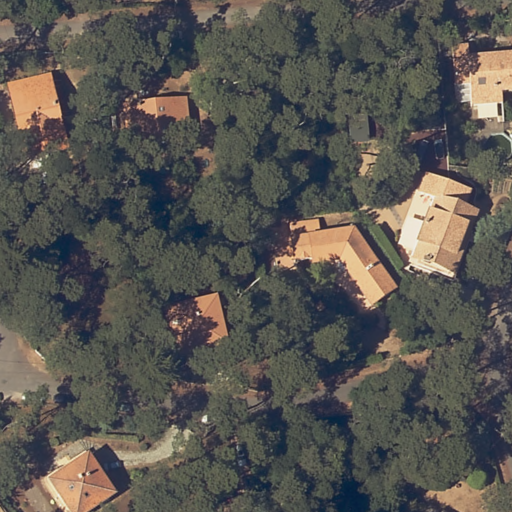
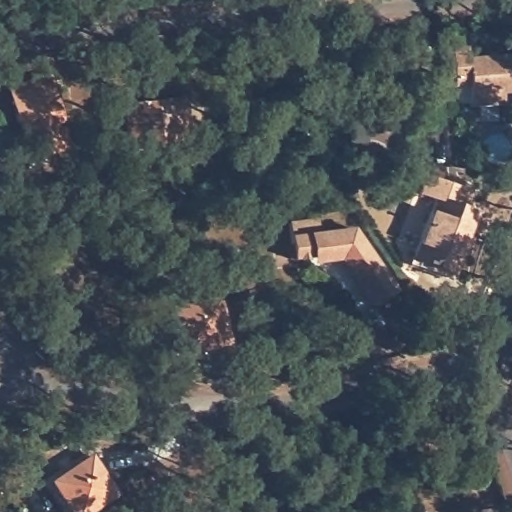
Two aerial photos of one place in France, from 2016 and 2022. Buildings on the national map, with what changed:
unchanged [(501,105),(470,107),(468,86),(454,88),(450,50),(464,47),(466,59),(512,54),(512,93),(500,95),(501,105)]
unchanged [(65,151),(25,161),(8,93),(48,83),(65,151)]
unchanged [(187,136),(129,142),(125,106),(184,100),(187,136)]
unchanged [(420,170),(432,175),(464,187),(457,205),(465,208),(443,268),(406,255),(428,195),(413,190),(417,179),(420,170)]
unchanged [(312,258),(311,251),(294,254),(289,220),(317,216),(319,230),(351,225),(393,285),(376,297),(369,300),(336,255),(312,258)]
unchanged [(229,346),(182,357),(171,314),(219,303),(229,346)]
unchanged [(428,418),(452,429),(446,447),(420,436),(428,418)]
unchanged [(112,493),(84,512),(71,512),(50,481),(88,455),(112,493)]

